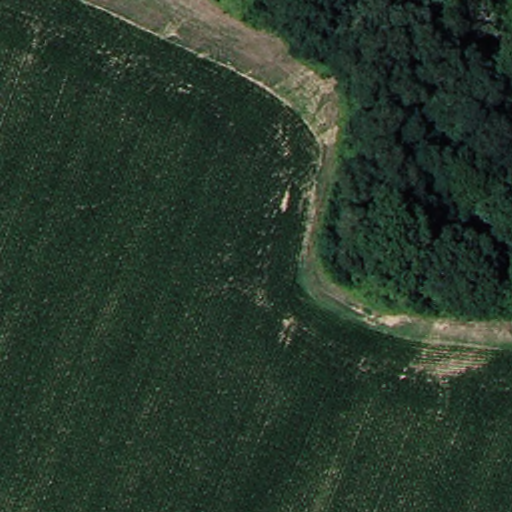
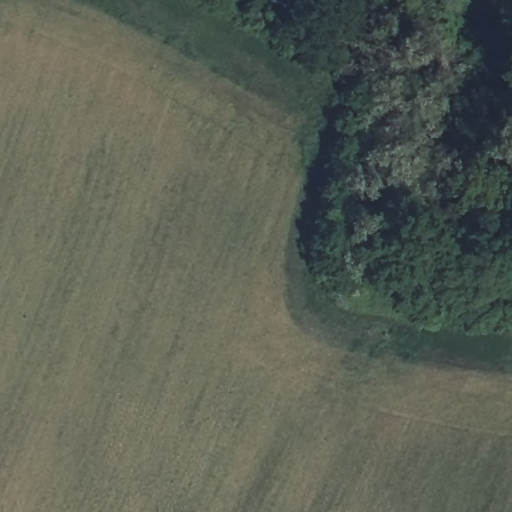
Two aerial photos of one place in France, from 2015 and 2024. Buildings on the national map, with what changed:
[]

